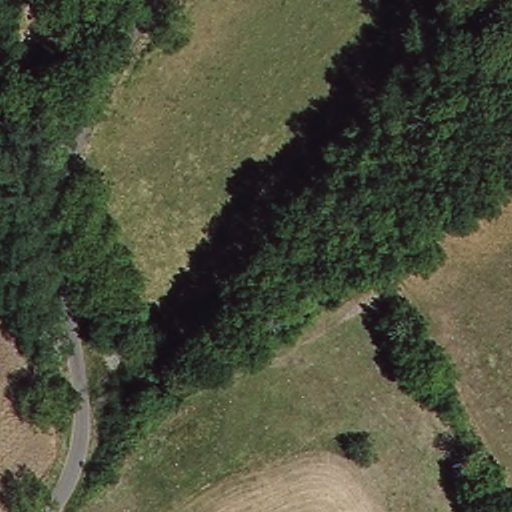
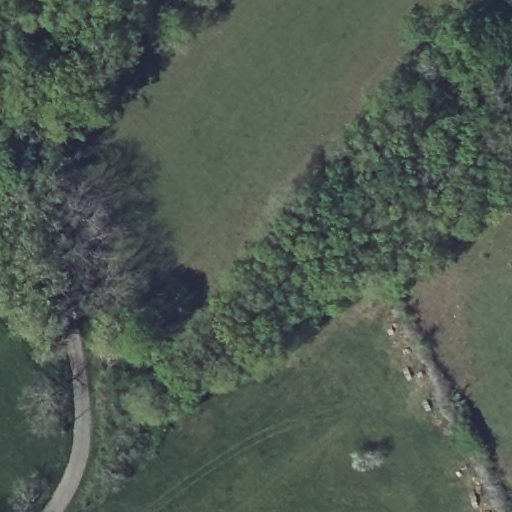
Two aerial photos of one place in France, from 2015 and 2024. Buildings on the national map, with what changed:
[]

